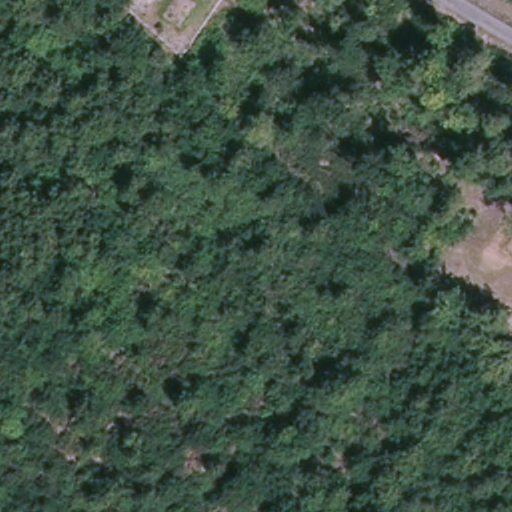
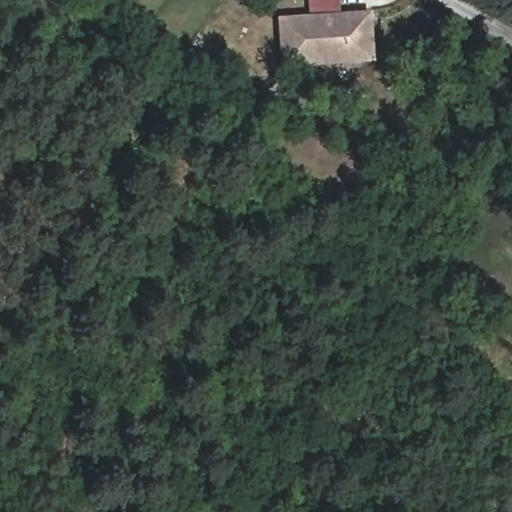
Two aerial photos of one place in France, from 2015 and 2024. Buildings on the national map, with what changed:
new [(311,14),(310,0),(341,0),(342,13),(372,10),(376,63),(282,69),(279,17),(311,14)]

